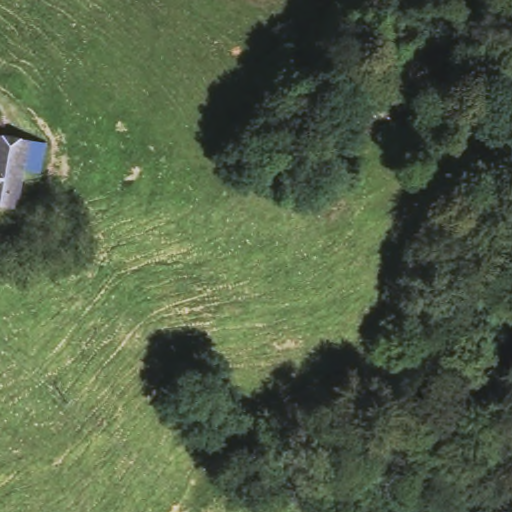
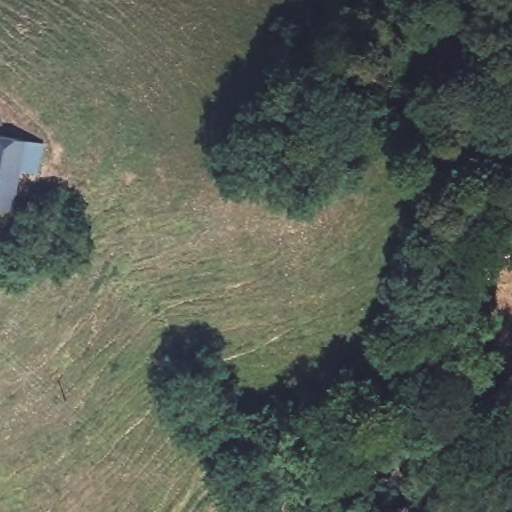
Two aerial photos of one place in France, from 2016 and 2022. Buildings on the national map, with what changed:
unchanged [(37,171),(19,166),(12,207),(0,204),(0,130),(42,138),(37,171)]

